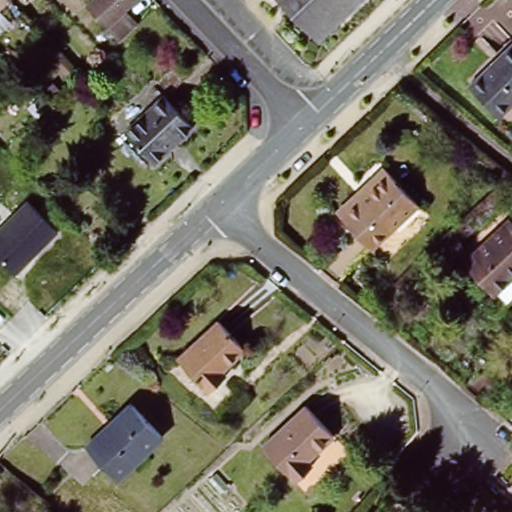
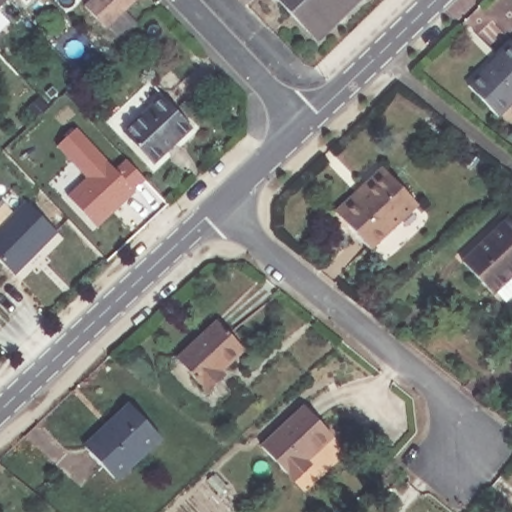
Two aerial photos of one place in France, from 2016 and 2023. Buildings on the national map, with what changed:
unchanged [(0,1),(0,0),(1,0),(0,1)]
unchanged [(122,11),(135,25),(115,42),(79,6),(85,0),(133,0),(122,11)]
unchanged [(317,47),(274,0),(367,0),(317,47)]
unchanged [(0,28),(0,18),(5,24),(0,28)]
unchanged [(465,92),(511,49),(512,50),(512,105),(495,122),(465,92)]
unchanged [(119,140),(157,102),(187,131),(148,170),(119,140)]
new [(77,127),(116,170),(127,159),(145,179),(135,189),(135,191),(97,227),(77,206),(97,187),(58,145),(77,127)]
unchanged [(419,216),(370,260),(342,229),(336,222),(364,197),(384,178),(419,216)]
unchanged [(15,272),(0,257),(0,224),(26,199),(57,231),(15,272)]
unchanged [(459,262),(505,220),(512,227),(512,291),(498,304),(459,262)]
unchanged [(172,360),(212,322),(239,350),(215,373),(222,381),(205,395),(172,360)]
unchanged [(80,452),(125,409),(159,445),(112,488),(80,452)]
unchanged [(255,452),(299,411),(327,440),(300,466),(307,472),(290,487),(255,452)]

